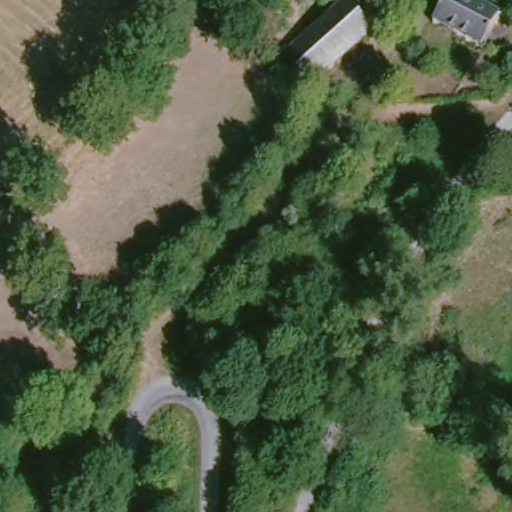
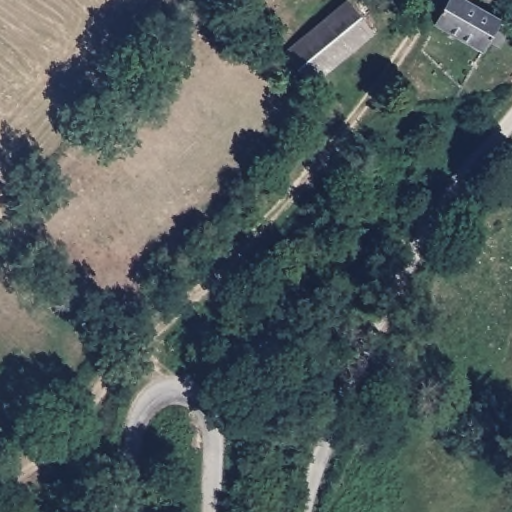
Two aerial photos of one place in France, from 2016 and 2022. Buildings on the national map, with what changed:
unchanged [(466,0),(512,29),(512,32),(501,48),(492,43),(489,48),(487,50),(444,26),(463,0),(466,0)]
unchanged [(500,8),(488,0),(512,0),(512,4),(506,12),(500,8)]
unchanged [(354,2),(381,35),(319,89),(292,57),(354,2)]

